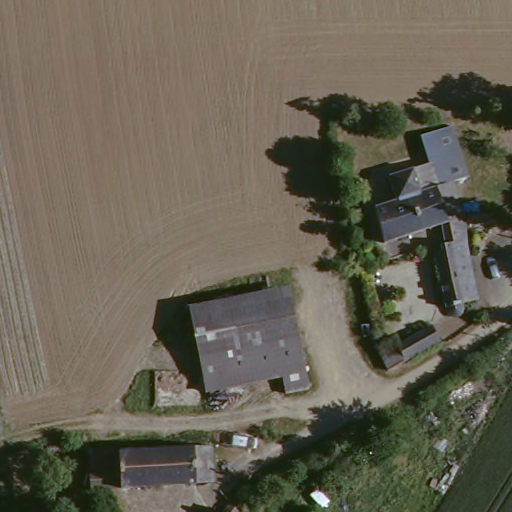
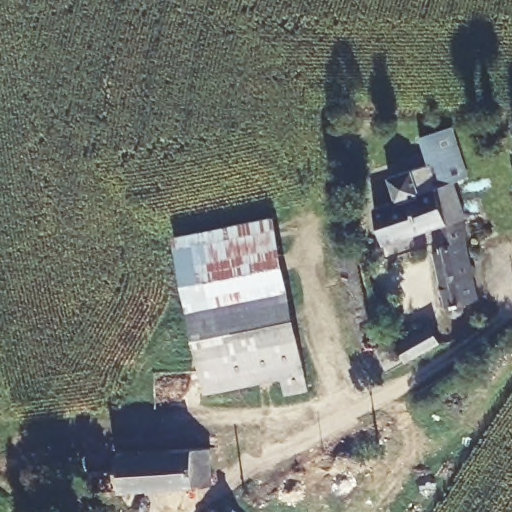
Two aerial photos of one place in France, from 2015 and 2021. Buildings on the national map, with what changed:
unchanged [(440,231),(439,225),(387,242),(375,209),(391,204),(384,182),(409,173),(430,166),(421,138),(452,128),(469,178),(454,183),(465,217),(461,219),(462,226),(440,231)]
new [(175,234),(272,215),(287,298),(190,315),(175,234)]
unchanged [(436,245),(442,244),(440,231),(462,226),(477,301),(469,303),(464,304),(464,306),(463,308),(462,310),(460,311),(457,311),(455,310),(453,309),(452,307),(447,308),(435,253),(436,245)]
unchanged [(190,315),(287,298),(295,335),(198,353),(190,315)]
unchanged [(432,332),(439,345),(440,347),(391,377),(391,376),(379,353),(394,344),(398,351),(432,332)]
unchanged [(295,335),(305,386),(282,390),(279,378),(205,390),(198,353),(295,335)]
unchanged [(200,445),(202,479),(202,482),(187,483),(181,484),(95,489),(82,489),(81,471),(109,468),(109,451),(186,446),(200,445)]
unchanged [(221,512),(212,512),(214,508),(221,512)]

